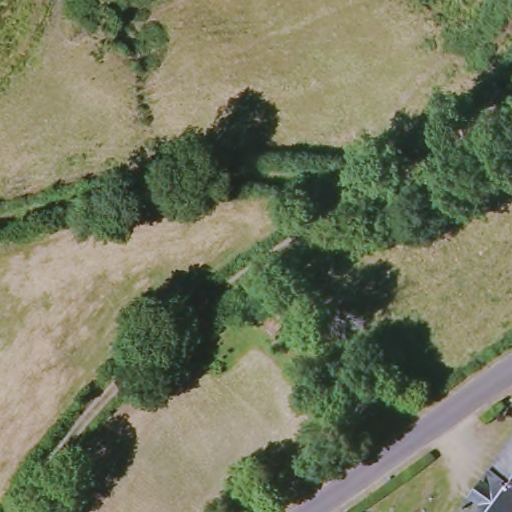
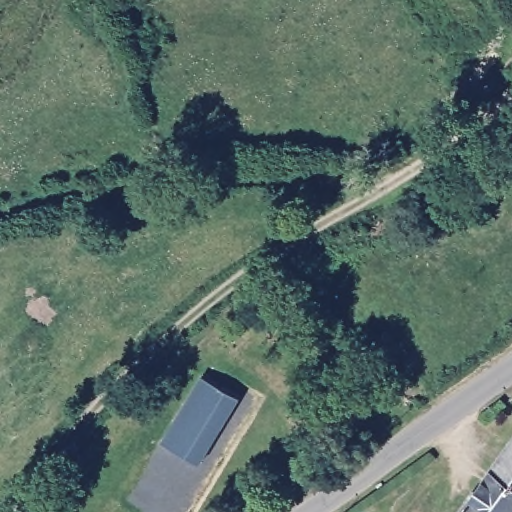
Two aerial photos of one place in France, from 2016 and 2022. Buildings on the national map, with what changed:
unchanged [(276,334),(267,327),(282,309),(291,316),(276,334)]
new [(202,375),(240,399),(200,464),(162,440),(202,375)]
unchanged [(356,421),(347,411),(381,379),(390,389),(356,421)]
unchanged [(492,472),(512,445),(512,512),(464,512),(492,472)]

